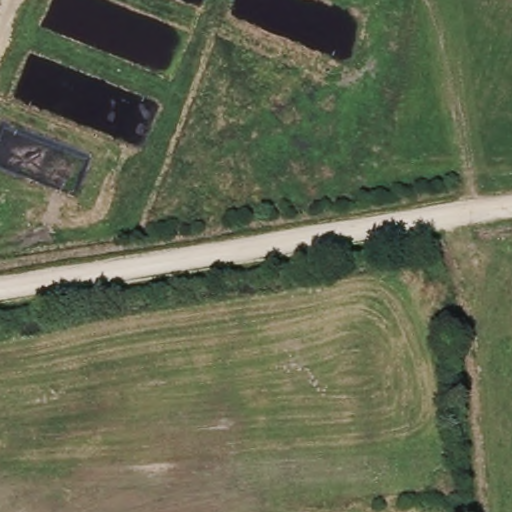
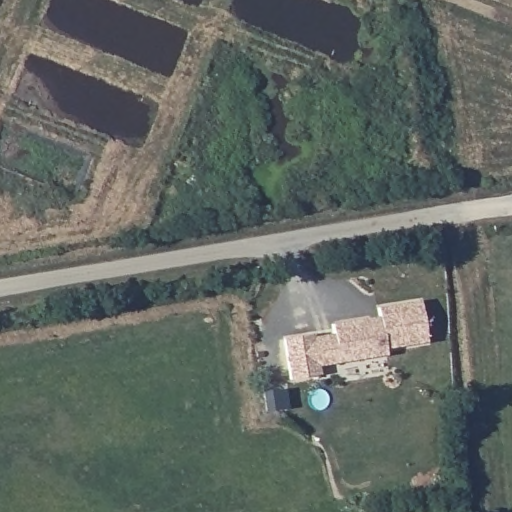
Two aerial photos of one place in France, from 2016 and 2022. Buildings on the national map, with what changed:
new [(334,334),(333,324),(371,318),(379,316),(378,308),(421,301),(428,342),(386,348),(387,355),(339,362),(319,366),(320,374),(290,379),(284,338),(314,333),(314,337),(334,334)]

